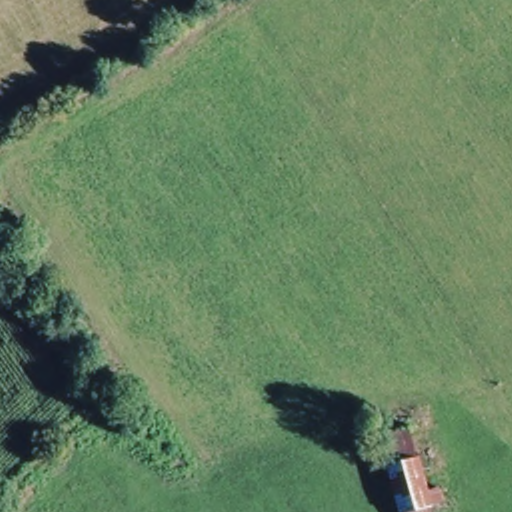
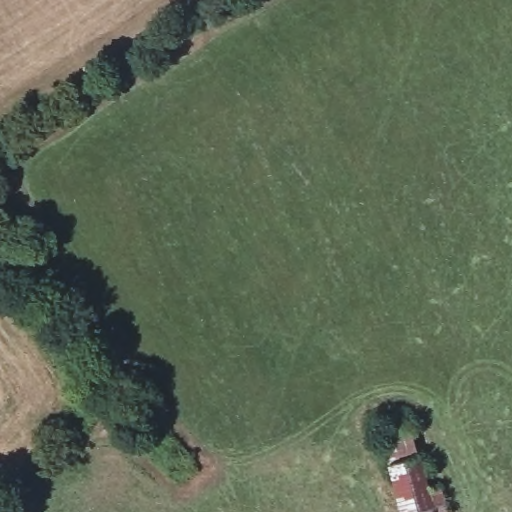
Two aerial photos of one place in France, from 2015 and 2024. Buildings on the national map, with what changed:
unchanged [(408,422),(418,453),(424,452),(432,484),(445,480),(451,500),(432,507),(434,512),(401,512),(387,463),(378,430),(408,422)]

